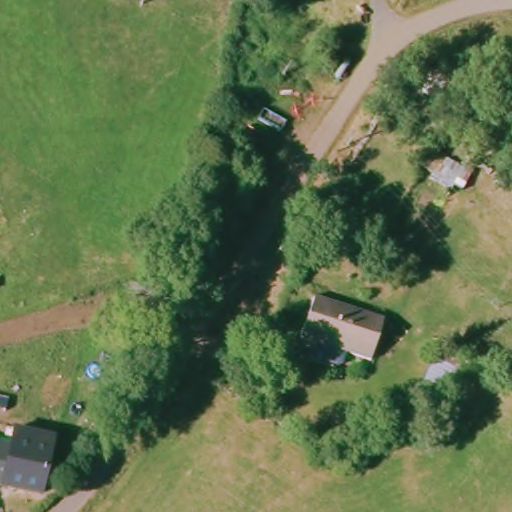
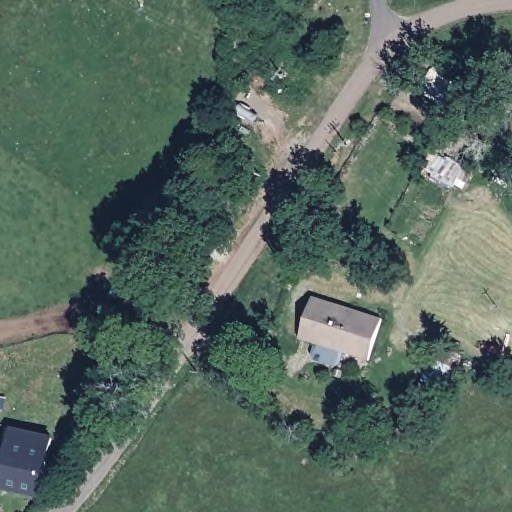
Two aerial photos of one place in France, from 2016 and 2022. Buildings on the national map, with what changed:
unchanged [(388,320),(377,362),(309,339),(322,300),(388,320)]
unchanged [(437,364),(460,373),(440,428),(417,422),(437,364)]
unchanged [(22,449),(25,437),(62,444),(52,499),(13,491),(22,449)]

